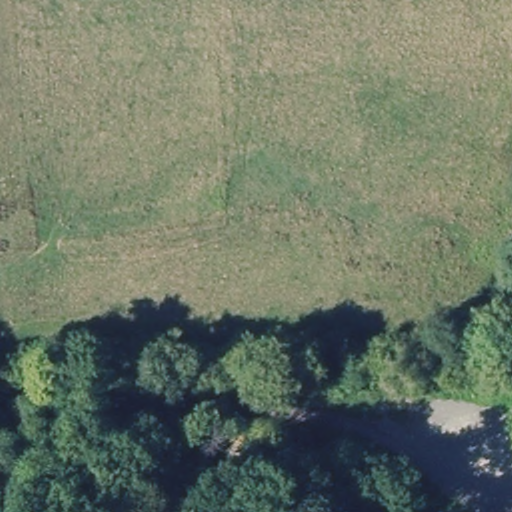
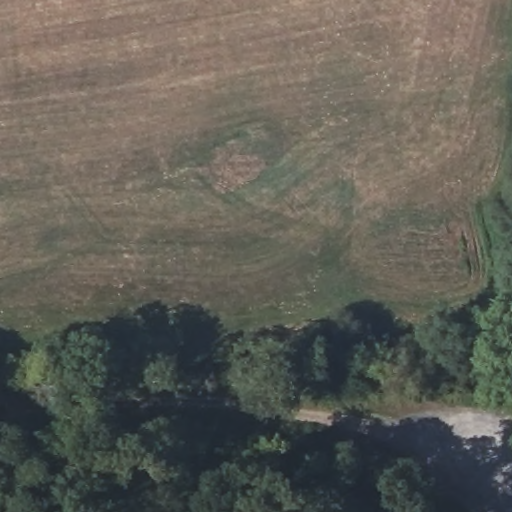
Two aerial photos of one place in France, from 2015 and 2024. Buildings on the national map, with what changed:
[]

